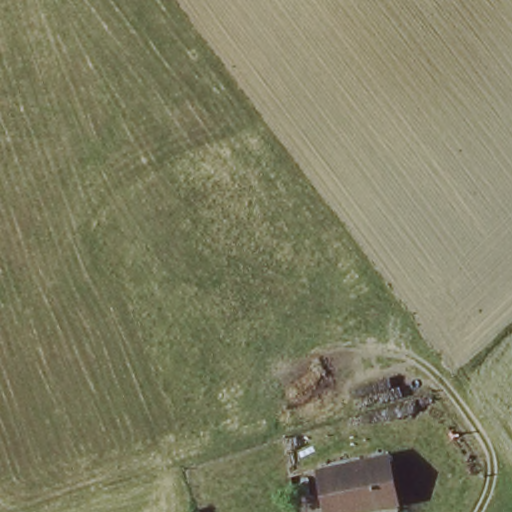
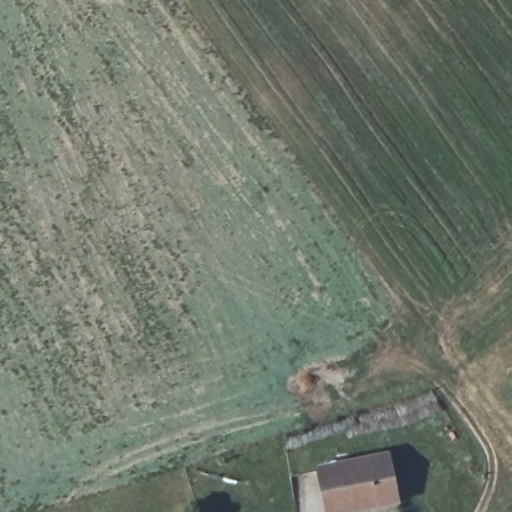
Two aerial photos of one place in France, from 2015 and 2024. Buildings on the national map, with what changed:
unchanged [(389,449),(400,505),(352,512),(320,512),(312,465),(389,449)]

